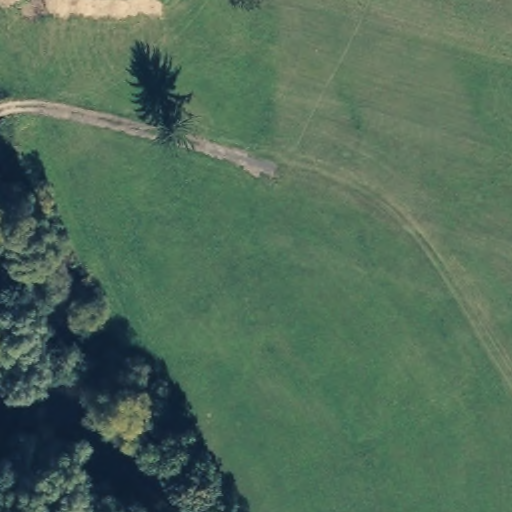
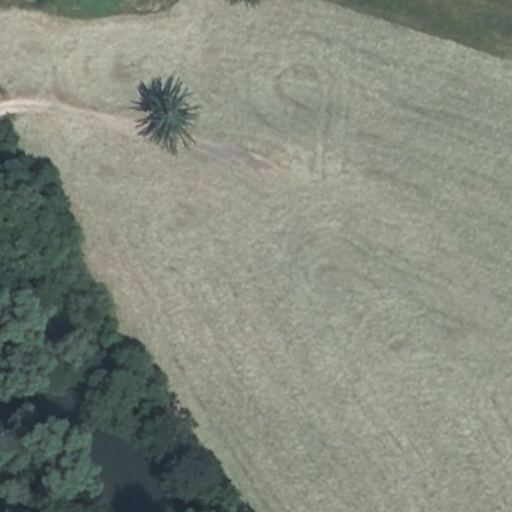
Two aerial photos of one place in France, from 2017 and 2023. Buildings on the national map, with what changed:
[]

